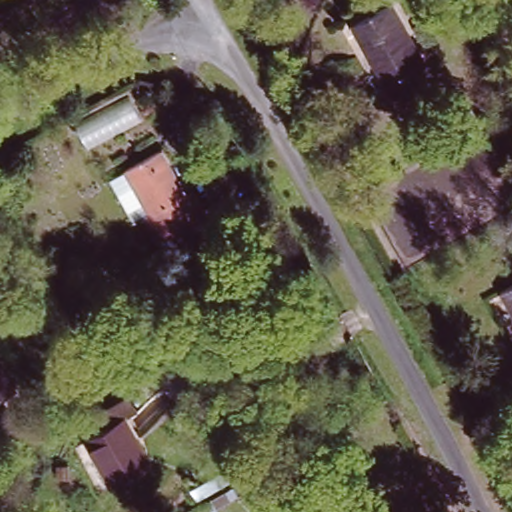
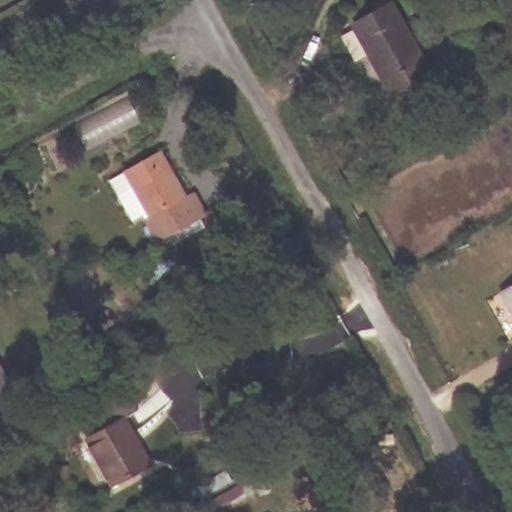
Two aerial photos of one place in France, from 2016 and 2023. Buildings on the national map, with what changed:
unchanged [(397,91),(387,74),(355,21),(393,1),(425,54),(435,70),(397,91)]
unchanged [(153,157),(177,199),(185,195),(197,219),(152,244),(139,220),(142,218),(119,176),(153,157)]
unchanged [(132,425),(142,444),(137,446),(153,474),(120,492),(93,445),(132,425)]

